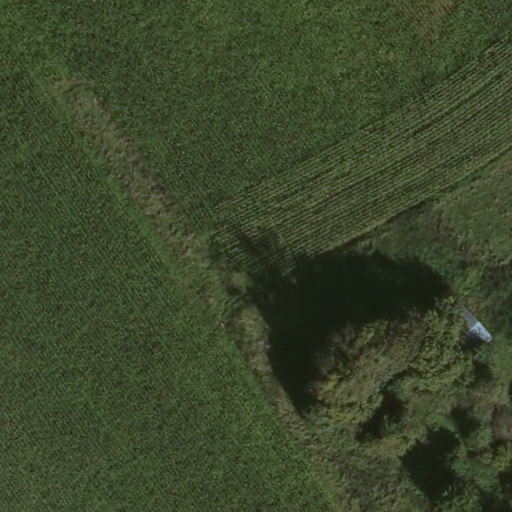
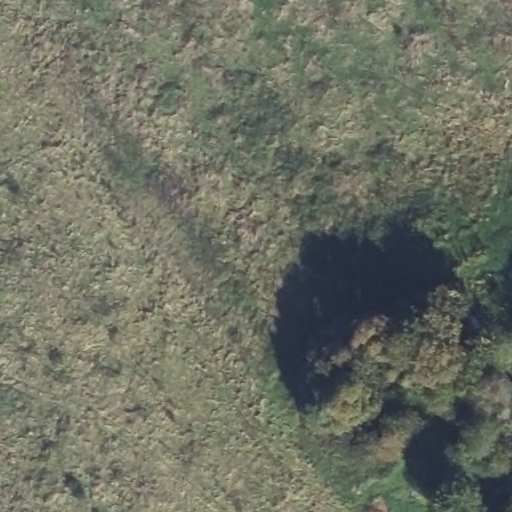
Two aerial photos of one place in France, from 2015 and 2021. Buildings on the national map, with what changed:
unchanged [(500,337),(462,366),(434,331),(471,300),(500,337)]

